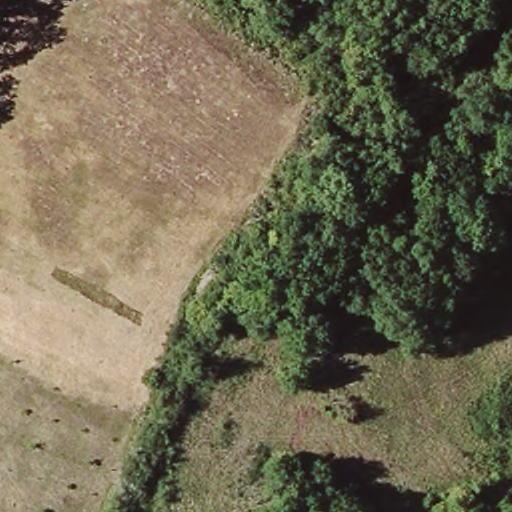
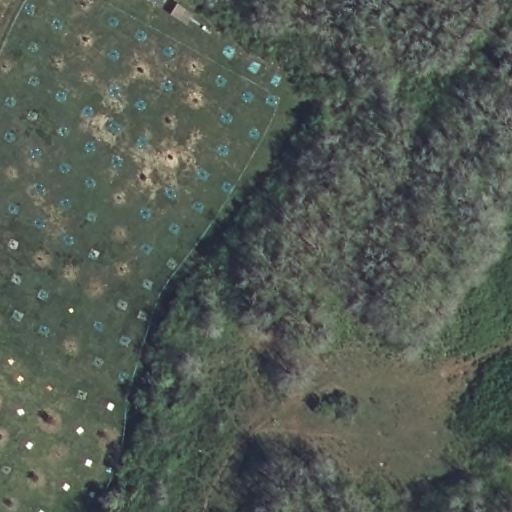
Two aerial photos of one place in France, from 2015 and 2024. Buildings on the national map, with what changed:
[]

